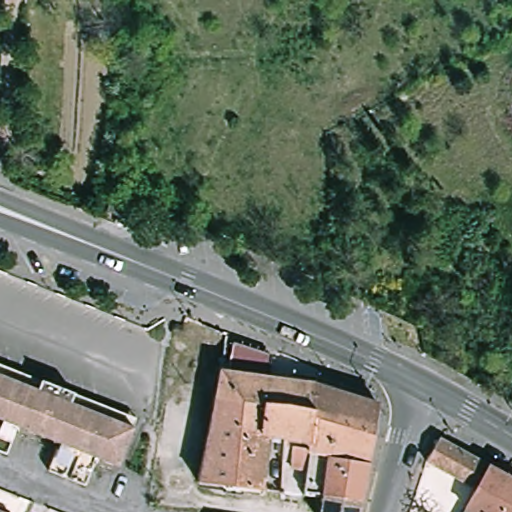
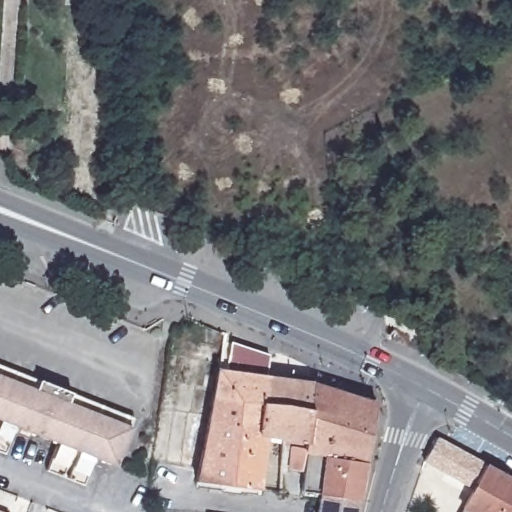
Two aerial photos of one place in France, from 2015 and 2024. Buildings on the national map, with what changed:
unchanged [(117,216),(105,211),(111,196),(123,201),(117,216)]
unchanged [(178,337),(170,333),(173,325),(182,328),(178,337)]
unchanged [(269,354),(266,375),(315,380),(315,383),(308,442),(304,470),(288,467),(289,439),(266,435),(259,490),(196,482),(207,424),(208,407),(210,392),(213,372),(223,374),(229,349),(269,354)]
unchanged [(99,462),(89,490),(51,476),(62,448),(21,431),(10,460),(0,456),(0,368),(44,385),(60,391),(77,398),(140,423),(136,432),(121,471),(99,462)]
unchanged [(335,390),(338,390),(374,402),(375,403),(375,405),(375,406),(365,463),(359,500),(320,495),(319,497),(301,495),(304,470),(308,442),(315,383),(335,390)]
unchanged [(429,461),(441,438),(490,465),(477,488),(429,461)]
unchanged [(477,488),(490,465),(512,478),(512,512),(465,512),(477,488)]
unchanged [(357,512),(317,512),(319,497),(320,495),(359,500),(357,512)]

